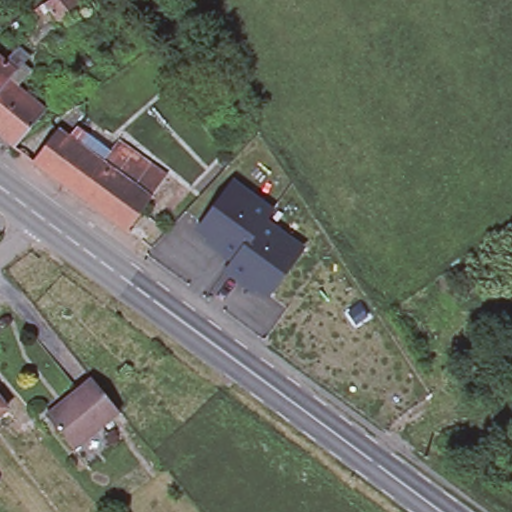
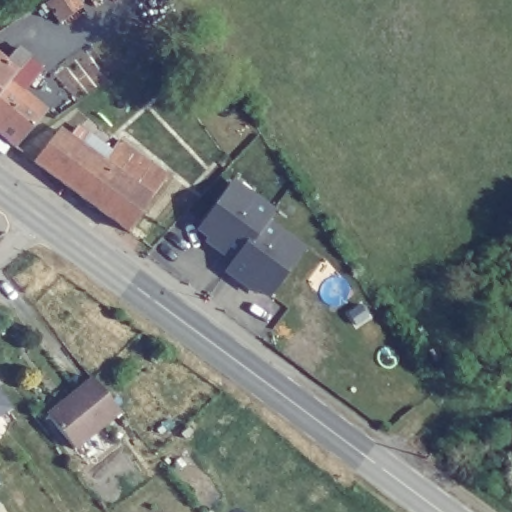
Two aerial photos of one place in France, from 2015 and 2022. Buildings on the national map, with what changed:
unchanged [(81,0),(86,8),(64,25),(54,12),(47,17),(46,15),(41,19),(37,14),(42,10),(55,0),(81,0)]
unchanged [(27,63),(13,77),(7,84),(0,92),(0,65),(2,67),(15,54),(27,63)]
unchanged [(12,153),(0,142),(0,92),(7,84),(43,115),(12,153)]
unchanged [(32,163),(56,131),(66,139),(76,127),(87,135),(78,147),(88,155),(90,154),(101,163),(107,167),(83,199),(32,163)]
unchanged [(101,163),(117,141),(166,177),(150,199),(107,167),(101,163)]
unchanged [(107,167),(150,199),(141,210),(126,230),(83,199),(107,167)]
unchanged [(231,180),(274,211),(264,224),(303,250),(268,299),(257,293),(253,295),(222,274),(227,263),(202,245),(205,240),(196,232),(231,180)]
unchanged [(91,377),(118,410),(75,446),(47,413),(91,377)]
unchanged [(0,412),(0,398),(6,407),(0,412)]

